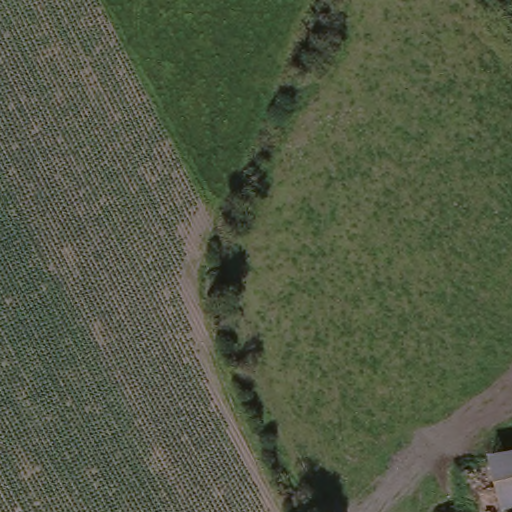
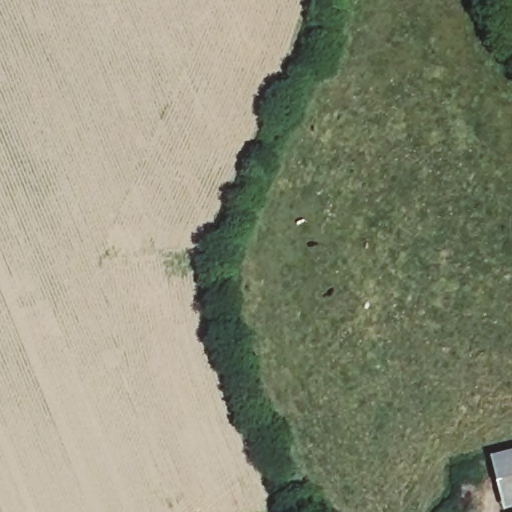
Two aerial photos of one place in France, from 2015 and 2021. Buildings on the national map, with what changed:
unchanged [(512,456),(512,511),(508,512),(501,512),(488,461),(512,456)]

